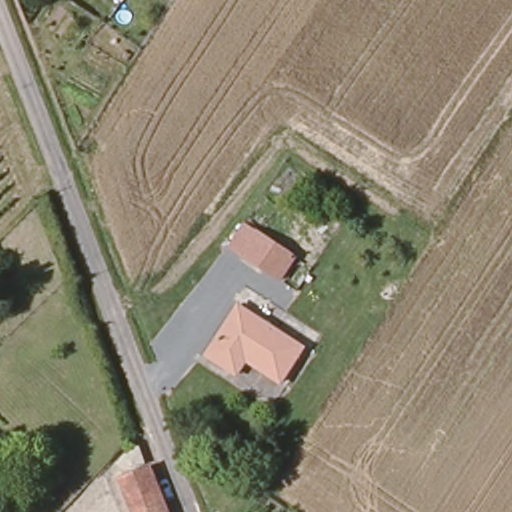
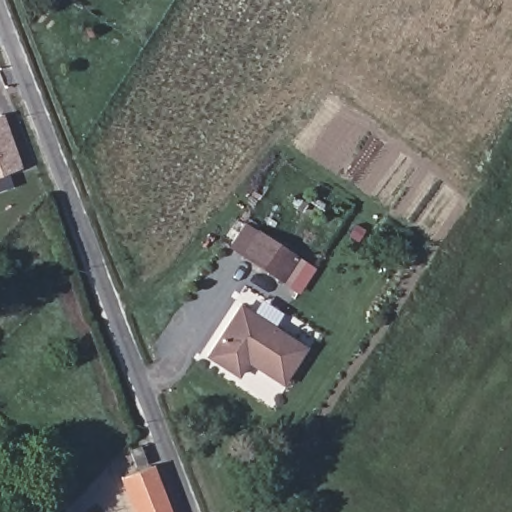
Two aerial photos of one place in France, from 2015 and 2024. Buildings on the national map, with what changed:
new [(1,115),(20,169),(0,176),(0,115),(1,115)]
unchanged [(291,250),(276,273),(239,249),(254,226),(291,250)]
unchanged [(234,306),(299,346),(278,381),(241,358),(232,372),(204,355),(234,306)]
unchanged [(136,512),(123,477),(152,466),(170,512),(136,512)]

